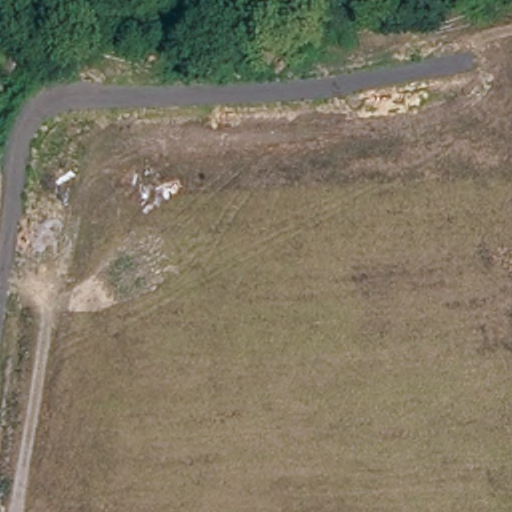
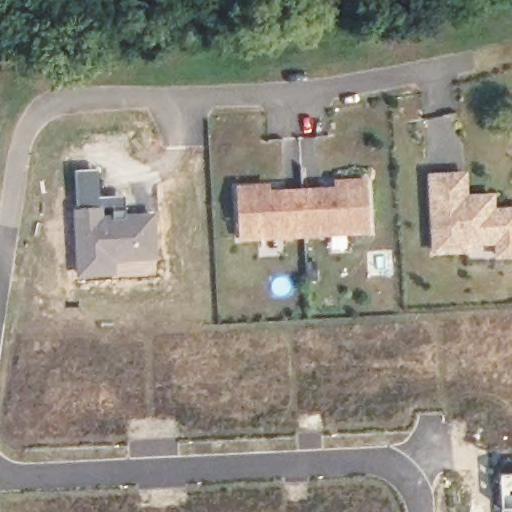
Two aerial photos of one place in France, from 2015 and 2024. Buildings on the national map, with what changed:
new [(115,209),(116,216),(103,216),(103,205),(78,205),(76,170),(97,169),(99,197),(123,195),(124,209),(115,209)]
new [(465,198),(493,197),(494,211),(512,211),(512,257),(498,257),(498,242),(468,244),(468,250),(434,251),(430,176),(448,175),(465,175),(465,198)]
new [(236,185),(267,184),(268,190),(338,186),(338,180),(369,178),(372,229),(239,235),(236,185)]
new [(103,205),(103,216),(116,216),(115,209),(128,209),(128,216),(156,215),(156,256),(121,256),(117,252),(112,257),(112,270),(79,271),(78,205),(103,205)]
new [(512,473),(512,512),(502,512),(501,474),(512,473)]

